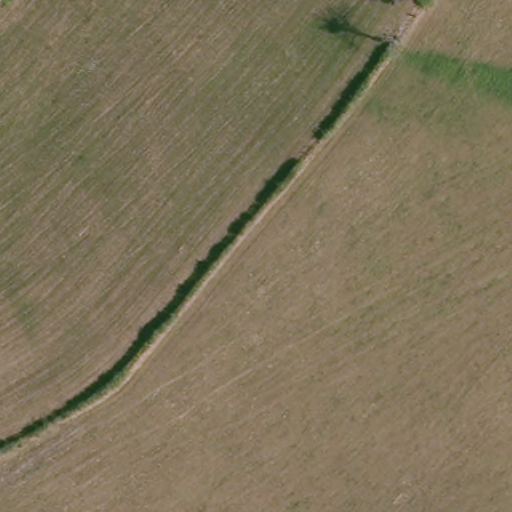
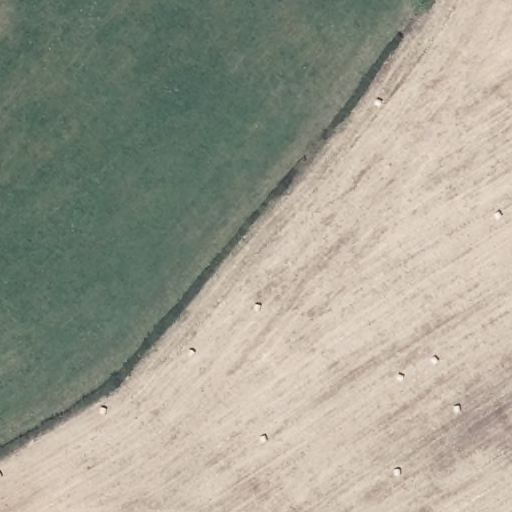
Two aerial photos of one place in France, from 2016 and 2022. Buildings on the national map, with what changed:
[]

